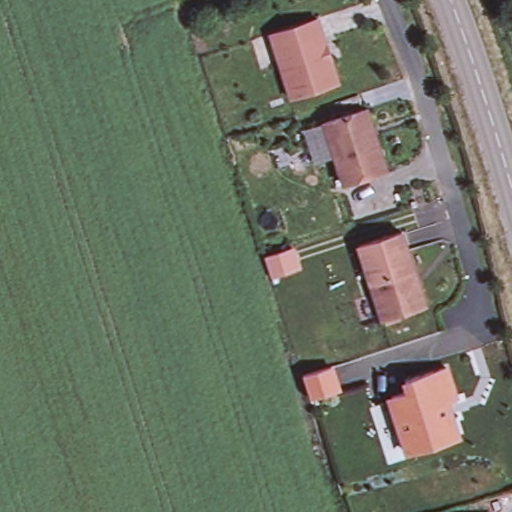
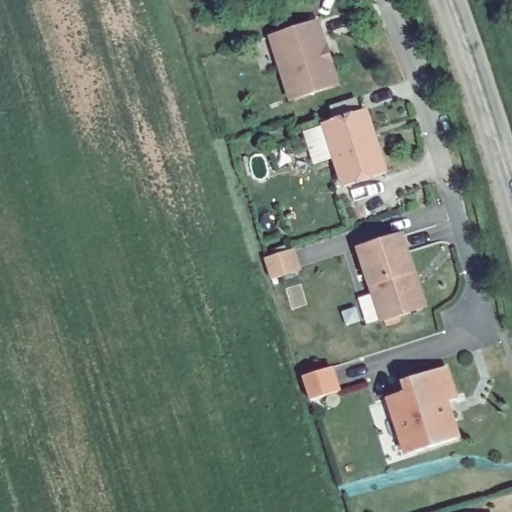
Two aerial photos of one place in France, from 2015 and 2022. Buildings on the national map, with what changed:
unchanged [(291,101),(270,36),(318,21),(326,48),(328,47),(332,62),(331,62),(338,86),(291,101)]
unchanged [(367,112),(374,116),(392,172),(348,187),(330,125),(367,112)]
unchanged [(424,307),(421,313),(382,325),(358,252),(402,239),(414,276),(420,292),(424,307)]
unchanged [(301,271),(275,280),(266,258),(293,249),(301,271)]
unchanged [(403,435),(391,394),(408,390),(405,379),(447,367),(456,399),(445,402),(456,438),(415,450),(408,452),(403,435)]
unchanged [(335,368),(342,392),(312,401),(305,377),(335,368)]

